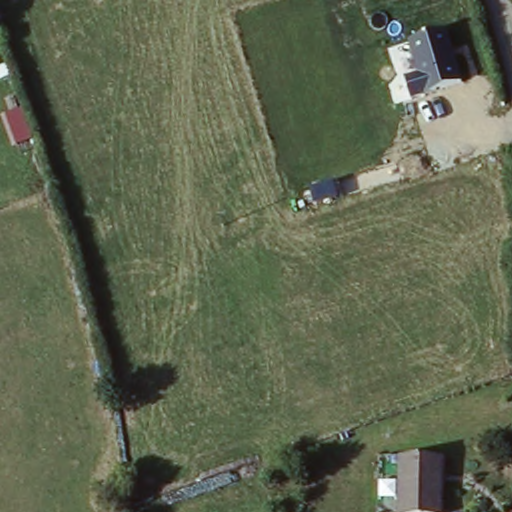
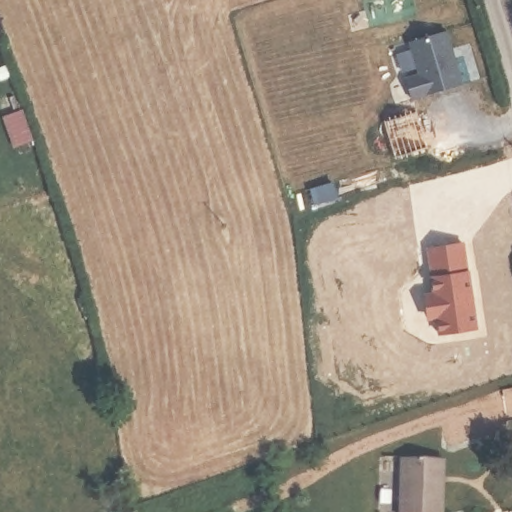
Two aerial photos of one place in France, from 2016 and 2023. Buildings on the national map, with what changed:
unchanged [(403,79),(415,75),(407,41),(449,30),(464,86),(412,100),(403,79)]
new [(21,111),(32,142),(13,149),(2,118),(21,111)]
new [(305,191),(331,184),(336,201),(311,209),(305,191)]
new [(430,294),(434,293),(432,277),(433,277),(429,249),(464,243),(468,272),(469,272),(473,295),(470,296),(471,308),(474,308),(477,330),(440,335),(438,318),(433,318),(428,315),(426,298),(430,294)]
unchanged [(446,460),(443,512),(393,512),(399,458),(446,460)]

